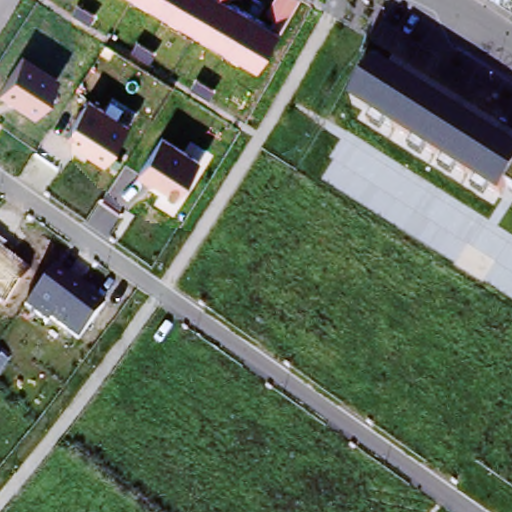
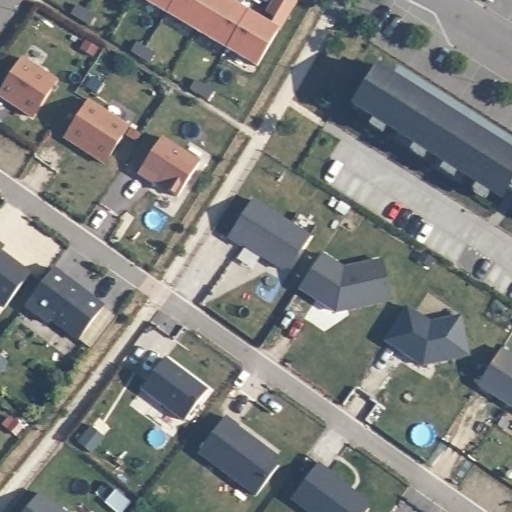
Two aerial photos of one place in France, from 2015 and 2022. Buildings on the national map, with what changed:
unchanged [(141,0),(227,0),(269,25),(274,16),(269,12),(275,0),(298,0),(280,31),(256,69),(141,0)]
unchanged [(22,57),(58,80),(35,115),(0,96),(0,95),(22,57)]
unchanged [(512,194),(510,192),(500,203),(351,107),(379,67),(394,77),(397,70),(512,141),(512,194)]
new [(197,82),(214,92),(209,101),(192,91),(197,82)]
unchanged [(130,126),(110,165),(68,137),(88,102),(130,126)]
unchanged [(200,164),(178,197),(139,173),(163,137),(200,164)]
new [(310,239),(290,270),(284,272),(244,246),(242,248),(229,239),(253,202),(310,239)]
unchanged [(31,272),(8,307),(0,301),(0,249),(31,272)]
new [(316,301),(315,296),(301,287),(321,257),(344,271),(382,262),(390,302),(347,311),(336,314),(316,301)]
unchanged [(52,267),(103,305),(79,339),(49,317),(46,321),(26,307),(52,267)]
new [(117,317),(92,350),(80,341),(104,308),(117,317)]
new [(430,325),(460,318),(469,358),(435,365),(434,361),(427,362),(423,368),(400,353),(400,348),(386,339),(406,309),(430,325)]
new [(512,409),(478,387),(500,352),(512,359),(512,409)]
new [(207,392),(185,423),(141,391),(164,361),(207,392)]
new [(225,419),(237,428),(237,430),(277,460),(279,468),(257,497),(198,455),(225,419)]
new [(330,477),(367,504),(369,511),(368,512),(306,512),(292,501),(318,466),(331,476),(330,477)]
new [(60,512),(27,512),(40,496),(60,512)]

